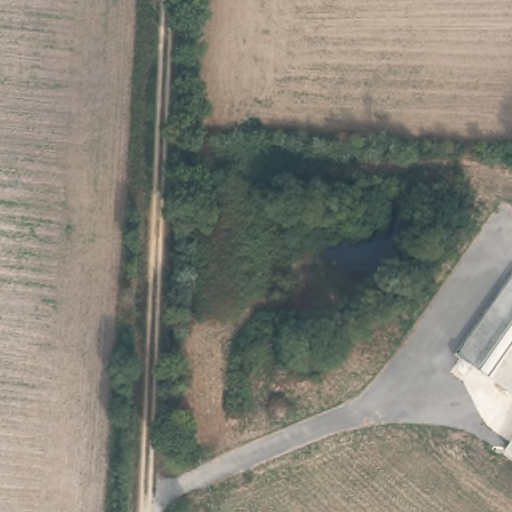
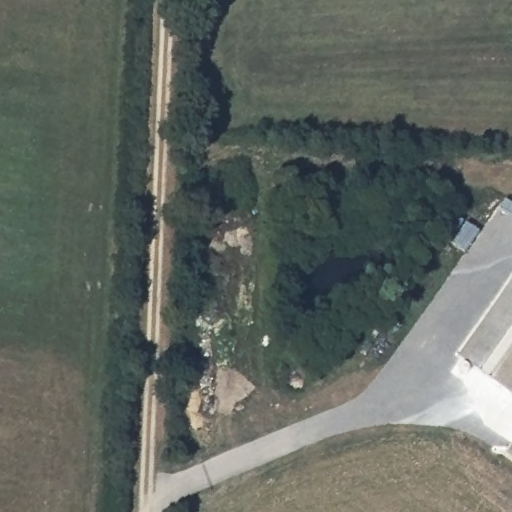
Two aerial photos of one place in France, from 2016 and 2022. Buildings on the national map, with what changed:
unchanged [(512,284),(512,392),(461,357),(512,284)]
unchanged [(512,439),(512,450),(507,446),(512,439)]

